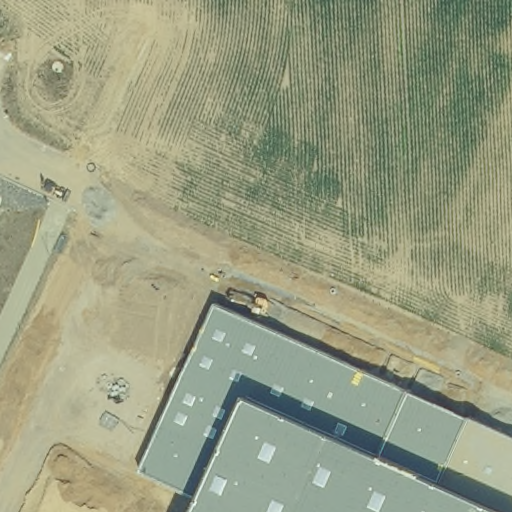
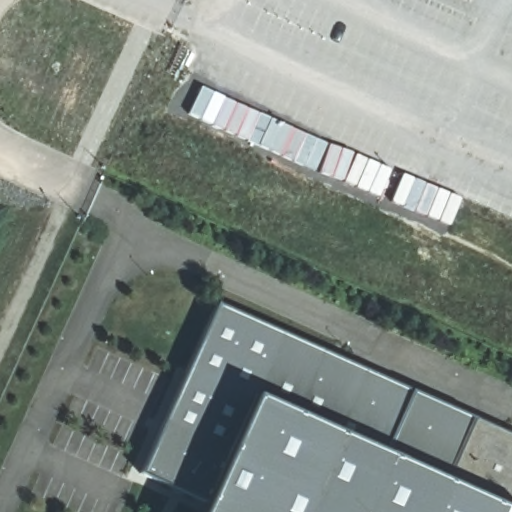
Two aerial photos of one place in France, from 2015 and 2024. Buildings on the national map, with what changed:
unchanged [(203,502),(143,472),(218,306),(512,436),(512,512),(199,512),(203,502)]

